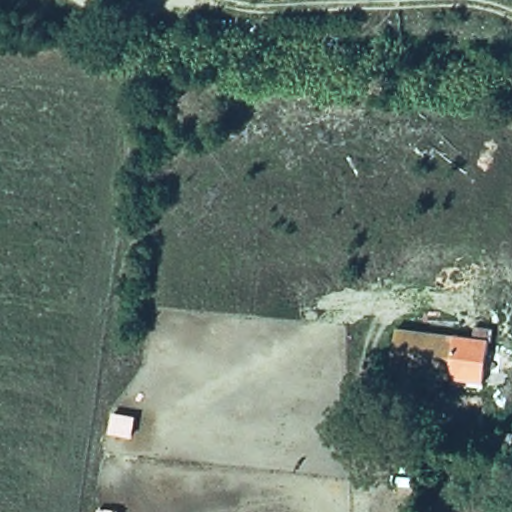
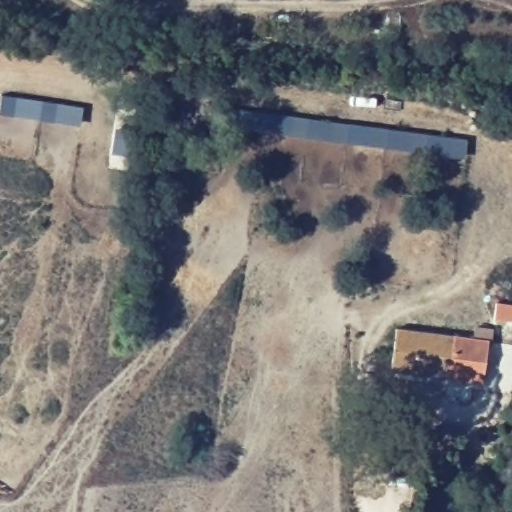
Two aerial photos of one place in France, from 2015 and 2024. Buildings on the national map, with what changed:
new [(84,106),(81,126),(0,114),(0,93),(84,106)]
new [(467,137),(465,158),(225,128),(227,107),(467,137)]
unchanged [(494,341),(485,340),(480,383),(392,372),(398,328),(476,338),(477,326),(495,329),(494,341)]
unchanged [(487,459),(490,432),(512,436),(512,460),(487,459)]

